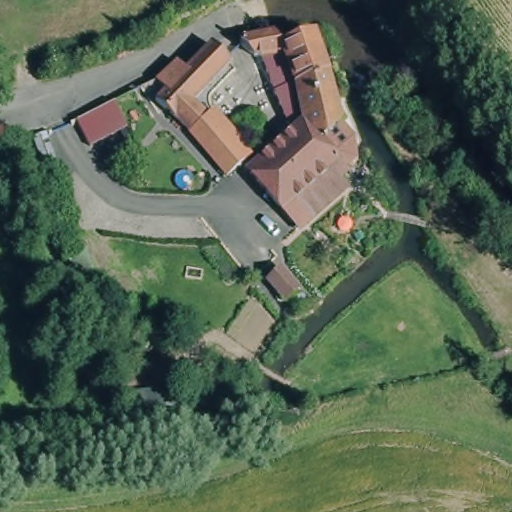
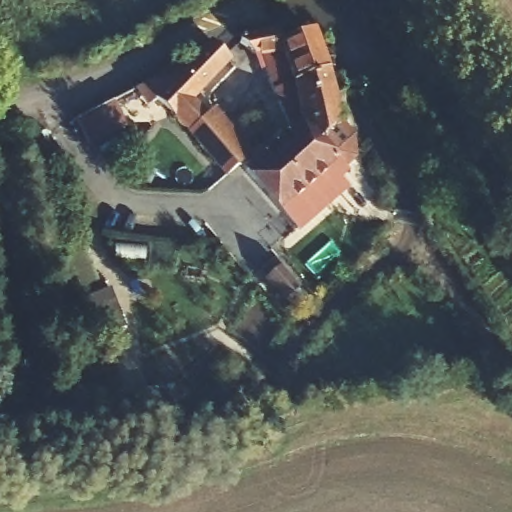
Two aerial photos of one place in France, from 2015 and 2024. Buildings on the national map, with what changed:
unchanged [(341,177),(349,185),(314,215),(297,196),(284,208),(249,170),(296,129),(276,95),(259,49),(251,51),(236,36),(270,29),(279,27),(285,40),(315,29),(331,68),(344,120),(341,123),(347,130),(354,138),(356,153),(356,158),(346,167),(349,170),(341,177)]
unchanged [(232,179),(216,161),(157,98),(166,88),(158,79),(178,58),(187,66),(216,41),(231,59),(191,97),(235,145),(251,162),(232,179)]
unchanged [(128,126),(89,144),(77,118),(114,101),(128,126)]
unchanged [(53,157),(41,161),(32,134),(44,130),(53,157)]
unchanged [(296,287),(282,299),(264,278),(277,266),(296,287)]

